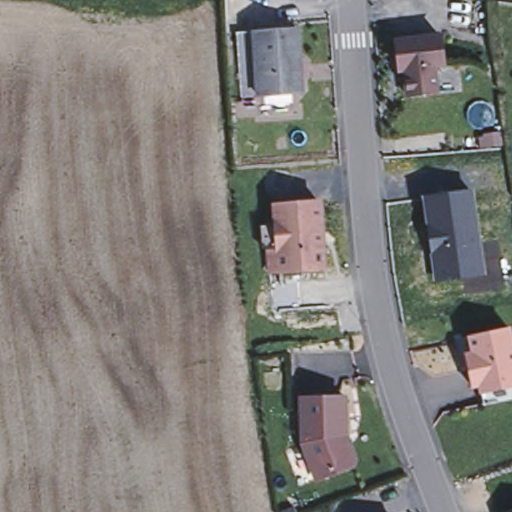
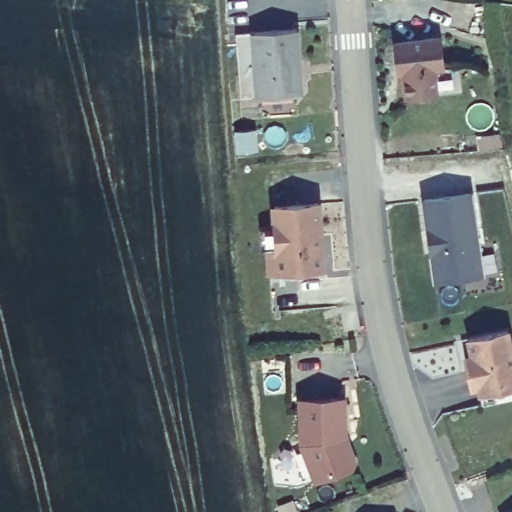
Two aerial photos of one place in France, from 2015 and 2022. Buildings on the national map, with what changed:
unchanged [(297,28),(302,89),(293,97),(257,97),(255,29),(297,28)]
unchanged [(440,36),(442,67),(435,68),(436,94),(405,96),(404,72),(398,72),(395,40),(440,36)]
unchanged [(470,193),(482,275),(435,281),(432,252),(434,252),(432,227),(428,227),(425,199),(470,193)]
unchanged [(318,204),(324,270),(270,274),(268,253),(277,254),(277,250),(262,251),(261,228),(275,227),(274,207),(318,204)]
unchanged [(472,352),(469,334),(508,326),(512,342),(512,397),(483,403),(480,383),(472,384),(465,353),(472,352)]
unchanged [(345,398),(345,431),(343,437),(347,443),(350,444),(355,461),(352,466),(317,479),(302,442),(303,398),(345,398)]

